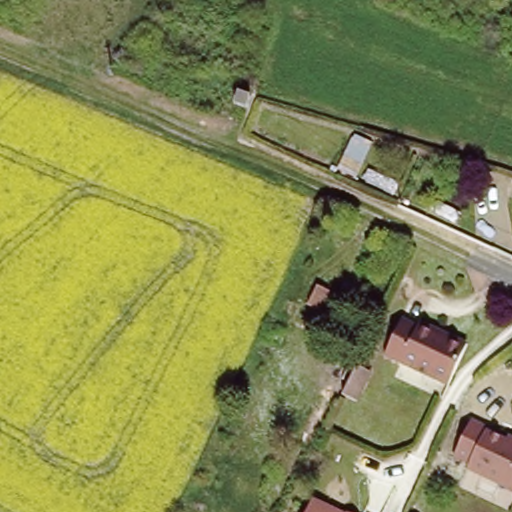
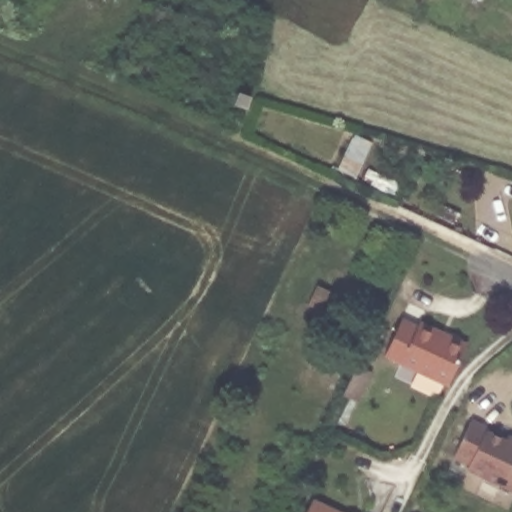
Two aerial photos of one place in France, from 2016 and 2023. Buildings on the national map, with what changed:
unchanged [(308,304),(317,285),(329,290),(320,310),(308,304)]
unchanged [(449,382),(385,353),(402,317),(437,333),(439,328),(447,332),(468,341),(449,382)]
unchanged [(355,368),(372,376),(358,406),(342,398),(355,368)]
unchanged [(467,465),(470,462),(455,455),(472,419),(487,426),(485,431),(505,439),(507,435),(512,437),(512,487),(467,465)]
unchanged [(343,512),(305,512),(312,497),(343,512)]

